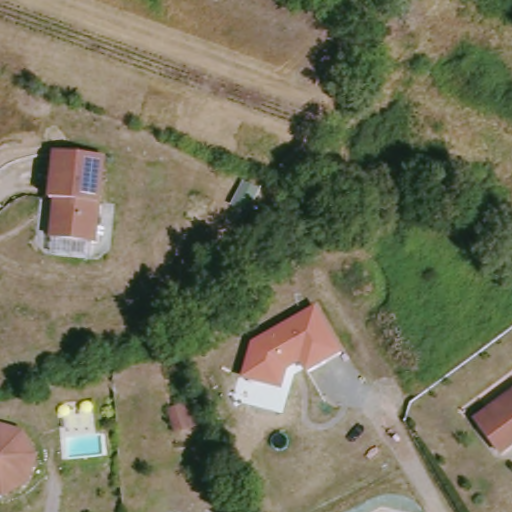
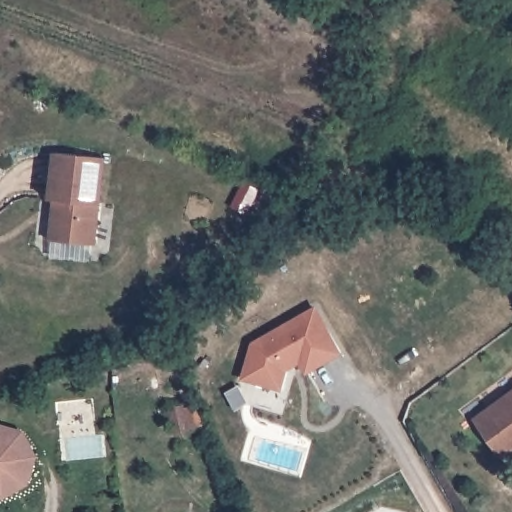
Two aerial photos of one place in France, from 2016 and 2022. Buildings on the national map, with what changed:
unchanged [(102,241),(57,238),(60,198),(55,198),(57,150),(107,153),(102,241)]
unchanged [(251,342),(316,305),(344,354),(307,374),(301,364),(289,371),(282,390),(241,379),(251,342)]
unchanged [(510,449),(501,447),(482,422),(497,411),(493,407),(512,393),(512,447),(510,449)]
unchanged [(191,407),(197,431),(182,434),(177,410),(191,407)]
unchanged [(13,426),(23,431),(28,436),(34,446),(36,458),(34,467),(31,475),(22,484),(15,488),(8,490),(0,490),(0,424),(2,424),(4,424),(13,426)]

